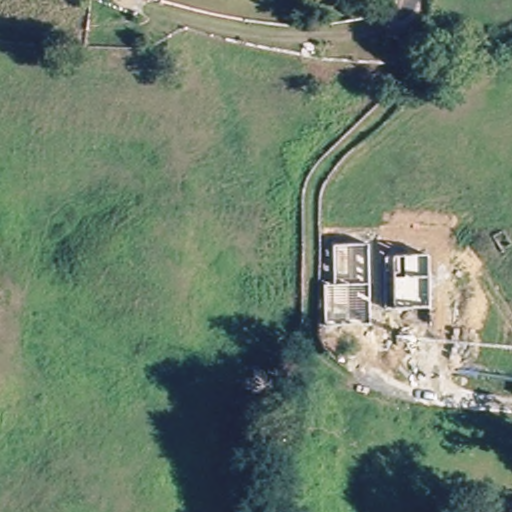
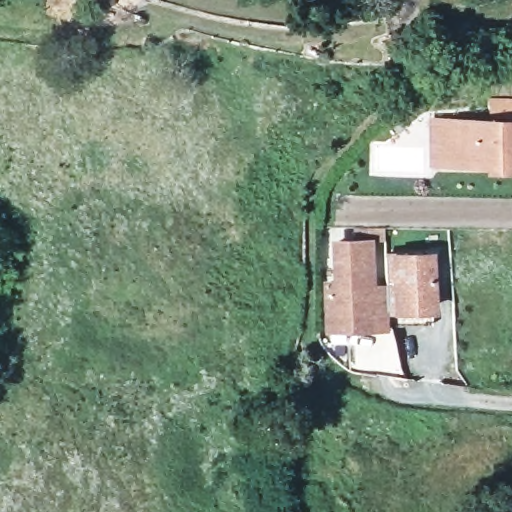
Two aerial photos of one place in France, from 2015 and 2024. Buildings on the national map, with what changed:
new [(428,117),(488,117),(488,98),(512,98),(512,173),(484,173),(484,167),(428,165),(428,117)]
unchanged [(327,287),(337,287),(335,246),(369,245),(372,326),(328,327),(327,287)]
unchanged [(384,258),(429,256),(431,307),(387,309),(384,258)]

